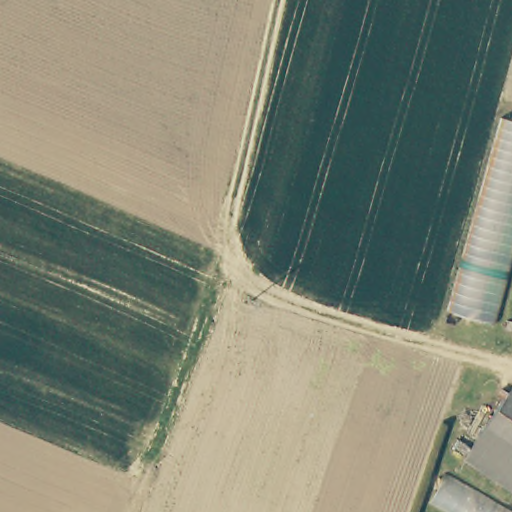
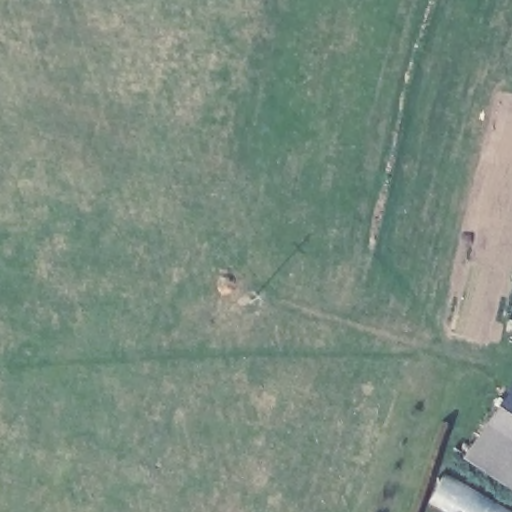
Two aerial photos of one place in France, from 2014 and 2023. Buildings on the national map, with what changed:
demolished [(442,313),(502,121),(512,124),(512,262),(492,328),(442,313)]
unchanged [(512,400),(512,449),(485,432),(495,417),(508,397),(512,400)]
unchanged [(466,462),(485,432),(512,449),(512,495),(466,462)]

